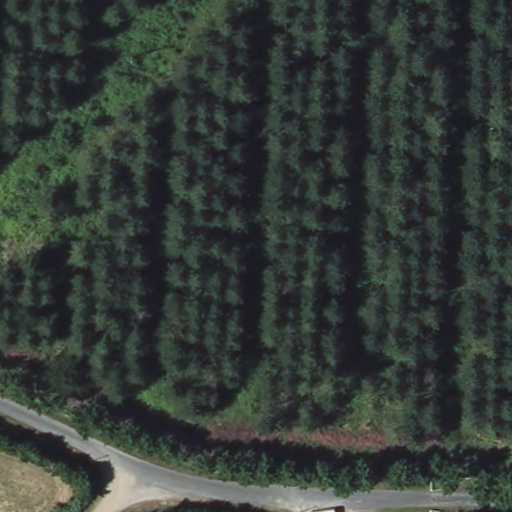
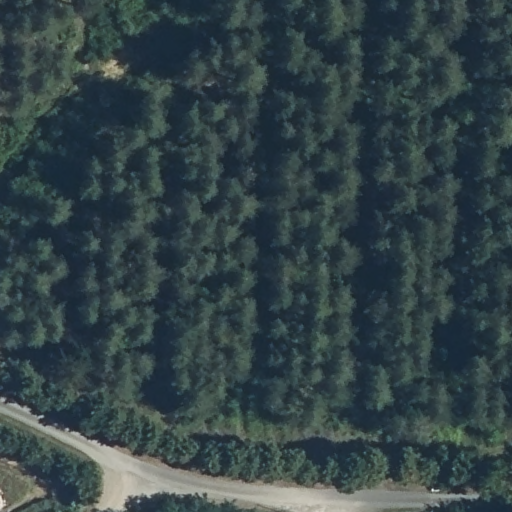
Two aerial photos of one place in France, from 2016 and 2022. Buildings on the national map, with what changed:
[]

